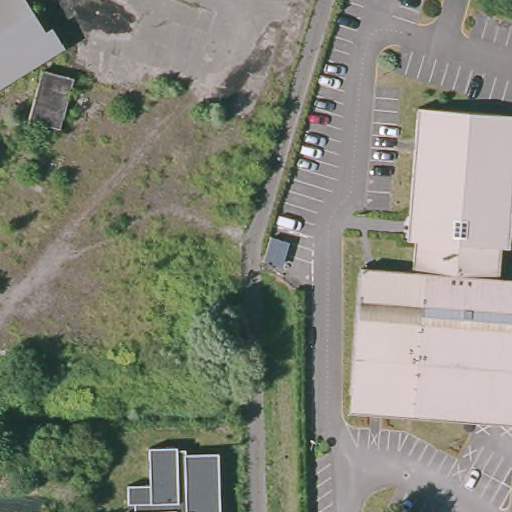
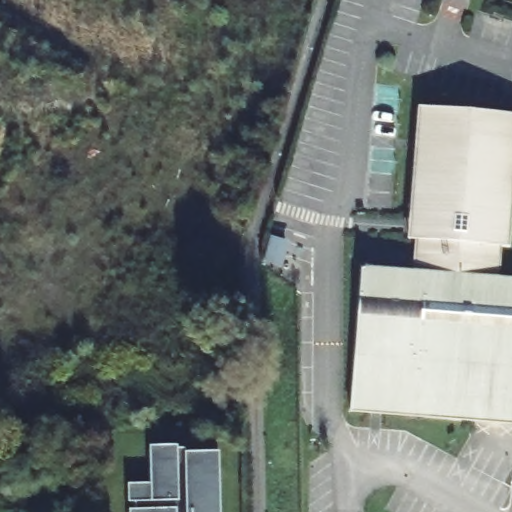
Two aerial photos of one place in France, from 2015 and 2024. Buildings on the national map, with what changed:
demolished [(40,35),(47,31),(59,50),(0,87),(0,0),(18,0),(40,35)]
demolished [(69,83),(56,134),(24,126),(39,75),(69,83)]
unchanged [(512,237),(511,249),(502,248),(499,277),(512,279),(512,422),(351,410),(364,267),(414,271),(418,241),(409,240),(410,216),(419,108),(512,116),(512,237)]
unchanged [(127,512),(126,484),(149,483),(148,448),(185,446),(185,455),(218,453),(221,512),(127,512)]

